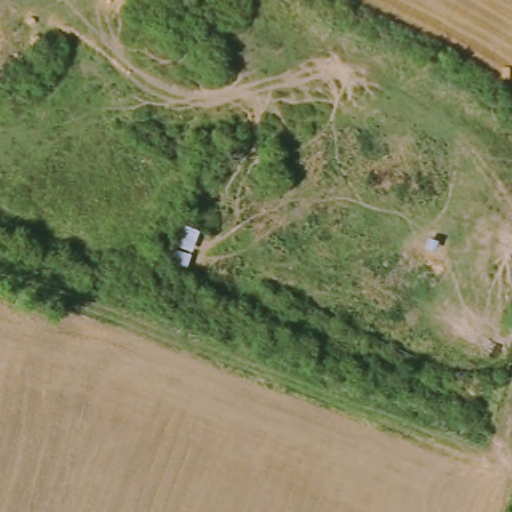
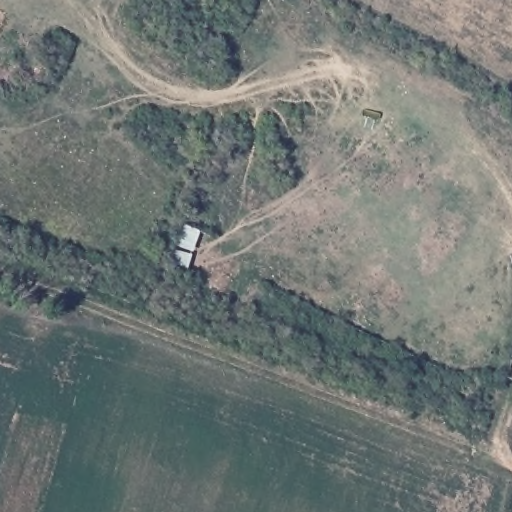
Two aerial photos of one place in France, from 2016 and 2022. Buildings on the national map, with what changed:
unchanged [(161,217),(175,222),(163,262),(147,257),(161,217)]

